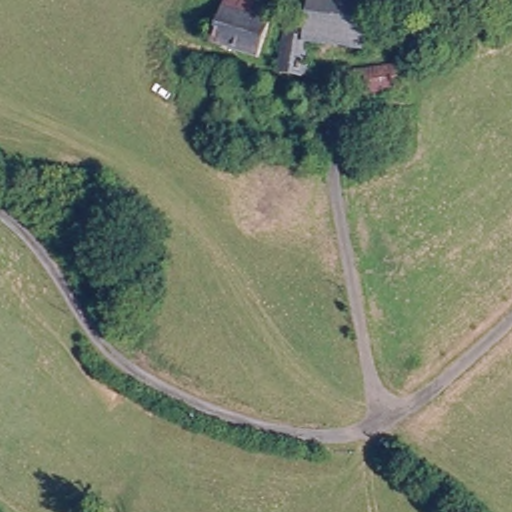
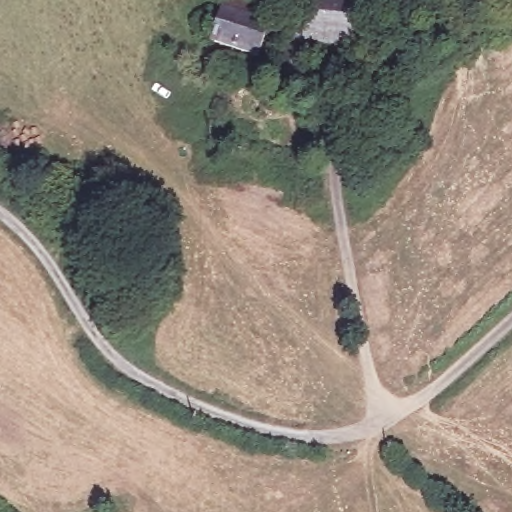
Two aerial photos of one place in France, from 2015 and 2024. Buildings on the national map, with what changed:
unchanged [(209,45),(225,0),(259,0),(273,4),(258,60),(209,45)]
unchanged [(363,23),(363,45),(305,41),(304,56),(308,57),(307,79),(278,76),(281,18),(304,18),(305,0),(380,0),(380,24),(363,23)]
unchanged [(411,0),(426,0),(423,21),(407,20),(411,0)]
unchanged [(336,71),(355,70),(402,65),(404,92),(337,97),(336,77),(336,71)]

